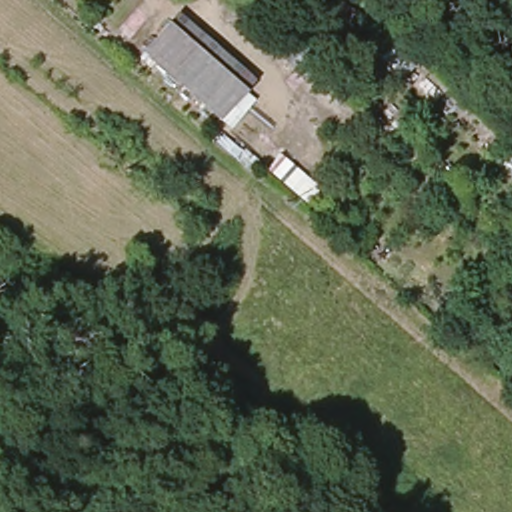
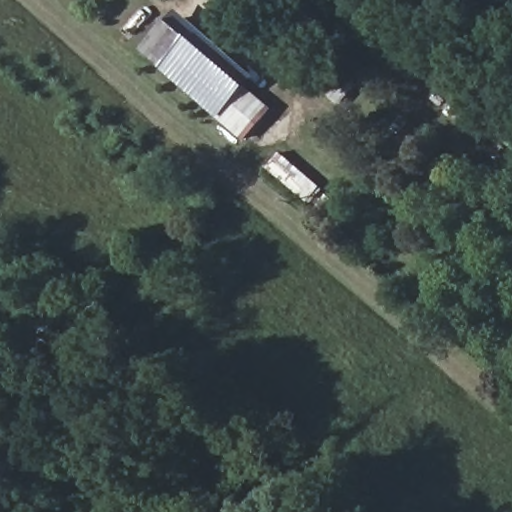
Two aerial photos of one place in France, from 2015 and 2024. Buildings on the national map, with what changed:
unchanged [(174,19),(249,84),(224,113),(148,48),(174,19)]

